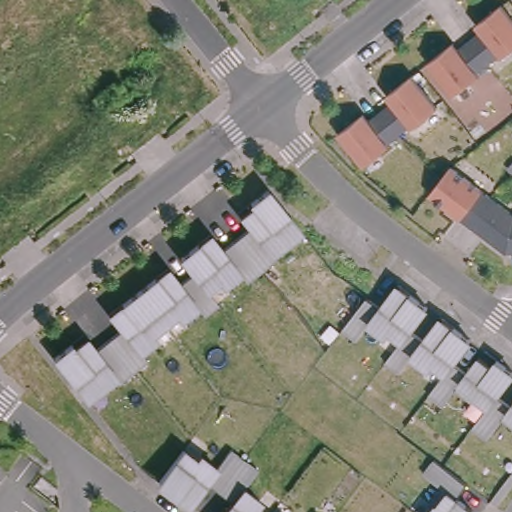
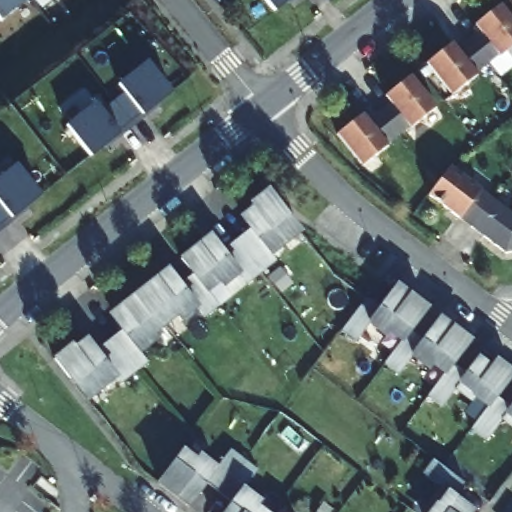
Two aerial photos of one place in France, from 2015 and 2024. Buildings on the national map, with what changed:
new [(3,20),(0,17),(0,0),(27,0),(3,20)]
new [(276,13),(266,0),(291,0),(276,13)]
unchanged [(483,28),(478,21),(485,15),(503,1),(512,12),(512,46),(503,53),(502,51),(493,59),(491,60),(472,37),(483,28)]
unchanged [(430,60),(455,39),(461,46),(472,37),(491,60),(480,70),(481,71),(455,91),(430,60)]
new [(172,90),(91,156),(66,127),(96,102),(104,111),(127,95),(118,85),(149,61),(172,90)]
unchanged [(398,129),(398,127),(382,108),(393,100),(388,92),(414,72),(439,105),(416,122),(414,125),(413,124),(412,123),(411,124),(401,132),(398,129)]
unchanged [(349,142),(341,132),(340,131),(343,129),(366,110),(371,117),(382,108),(398,127),(398,129),(401,132),(400,133),(390,141),(391,142),(366,163),(349,142)]
unchanged [(464,214),(463,215),(432,191),(453,163),(495,195),(477,219),(475,221),(464,214)]
new [(40,195),(0,227),(0,179),(17,166),(40,195)]
unchanged [(48,358),(65,344),(72,350),(84,339),(96,351),(121,331),(108,316),(165,270),(182,286),(193,276),(178,258),(208,234),(225,252),(251,232),(239,219),(253,207),(247,200),(263,189),(298,231),(269,254),(181,324),(175,317),(153,335),(160,342),(87,400),(48,358)]
unchanged [(508,249),(477,225),(474,223),(475,221),(477,219),(495,195),(512,209),(512,248),(508,249)]
unchanged [(425,307),(409,330),(419,338),(436,316),(466,340),(452,358),(465,370),(475,356),(486,365),(492,358),(512,372),(512,376),(497,396),(509,404),(512,400),(512,425),(500,416),(483,436),(470,427),(488,409),(454,383),(437,402),(425,393),(437,377),(408,356),(393,372),(381,363),(398,345),(365,320),(352,335),(342,328),(363,298),(375,307),(393,284),(393,285),(425,307)]
unchanged [(251,467),(238,487),(256,499),(253,507),(261,512),(224,512),(231,502),(206,485),(187,508),(155,483),(180,451),(195,461),(200,454),(216,466),(229,450),(251,467)]
unchanged [(423,512),(443,487),(422,473),(431,460),(460,483),(452,495),(470,508),(467,512),(423,512)]

